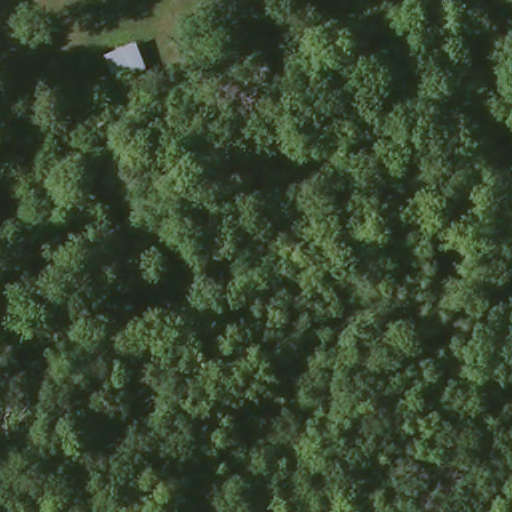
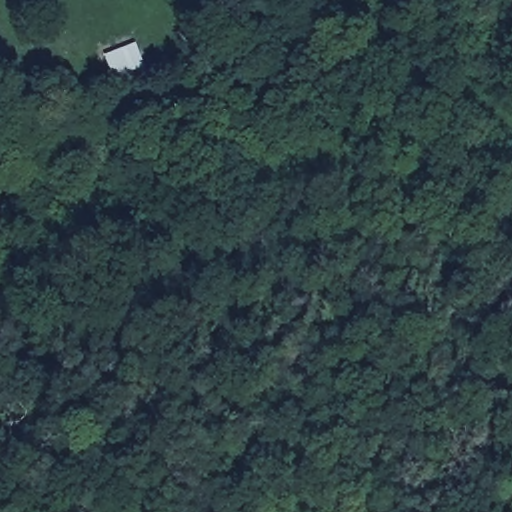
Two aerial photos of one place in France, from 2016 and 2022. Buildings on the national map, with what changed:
unchanged [(147,70),(119,77),(111,49),(140,41),(147,70)]

